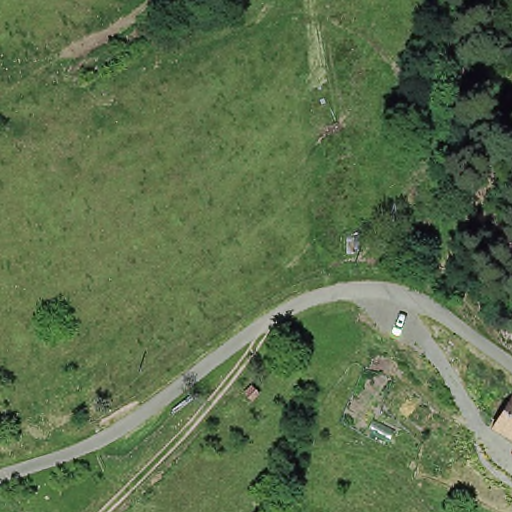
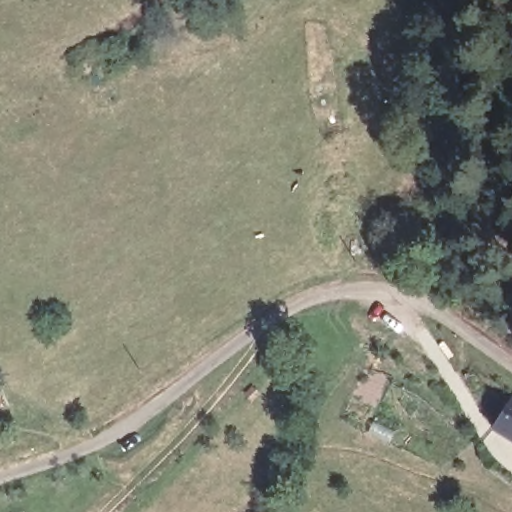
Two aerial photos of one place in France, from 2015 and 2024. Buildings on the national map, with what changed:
unchanged [(413,340),(437,359),(432,364),(420,375),(402,355),(402,354),(413,340)]
unchanged [(512,446),(489,431),(512,399),(512,446)]

